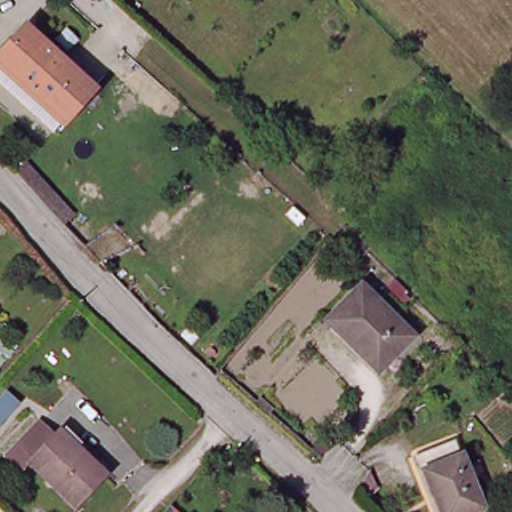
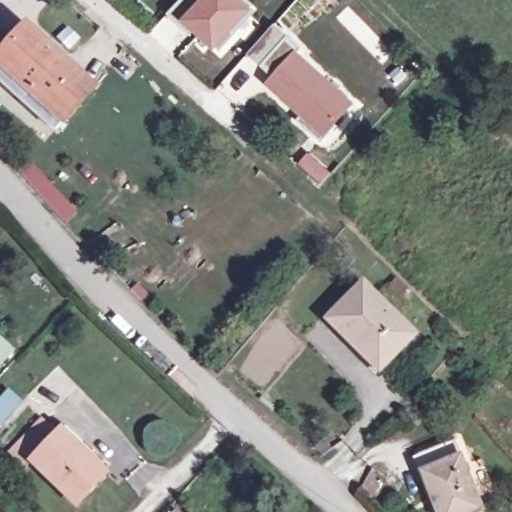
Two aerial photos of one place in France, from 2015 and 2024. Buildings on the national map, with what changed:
new [(248,0),(256,7),(217,54),(166,13),(178,0),(248,0)]
unchanged [(0,53),(27,22),(95,83),(57,126),(0,75),(0,53)]
new [(295,47),(355,101),(320,140),(262,83),(295,47)]
new [(309,150),(332,172),(320,184),(297,163),(309,150)]
unchanged [(42,200),(18,170),(30,161),(84,222),(73,231),(42,200)]
unchanged [(360,350),(330,320),(363,285),(415,336),(385,366),(380,370),(360,350)]
unchanged [(15,349),(0,366),(0,339),(1,337),(15,349)]
unchanged [(113,479),(82,511),(36,467),(41,461),(26,447),(47,426),(61,440),(66,434),(113,479)]
unchanged [(475,512),(442,512),(420,453),(457,439),(485,508),(475,512)]

